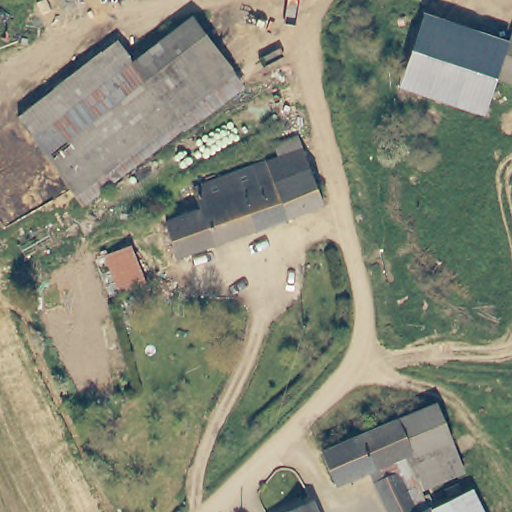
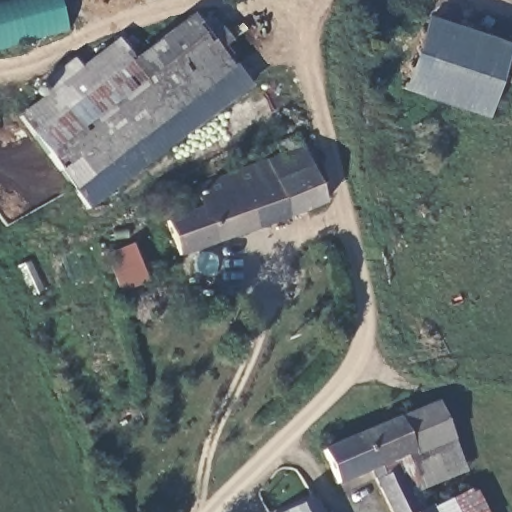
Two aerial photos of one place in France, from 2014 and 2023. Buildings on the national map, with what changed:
new [(0,0),(60,0),(69,29),(0,49),(0,0)]
unchanged [(85,205),(35,139),(135,60),(193,15),(244,81),(85,205)]
unchanged [(433,19),(509,44),(498,77),(485,116),(432,97),(400,87),(423,16),(433,19)]
unchanged [(512,34),(512,82),(498,77),(509,44),(512,34)]
unchanged [(20,119),(120,40),(135,60),(35,139),(20,119)]
unchanged [(303,145),(321,201),(287,214),(266,159),(303,145)]
unchanged [(162,222),(171,219),(200,208),(192,186),(266,159),(287,214),(182,254),(176,256),(162,222)]
unchanged [(90,246),(112,235),(136,285),(114,296),(90,246)]
unchanged [(367,469),(332,483),(320,450),(435,402),(450,440),(402,459),(417,489),(426,508),(428,512),(388,512),(367,469)]
unchanged [(461,472),(417,489),(402,459),(450,440),(461,472)]
unchanged [(468,493),(476,512),(429,512),(468,493)]
unchanged [(314,501),(319,512),(291,512),(314,501)]

